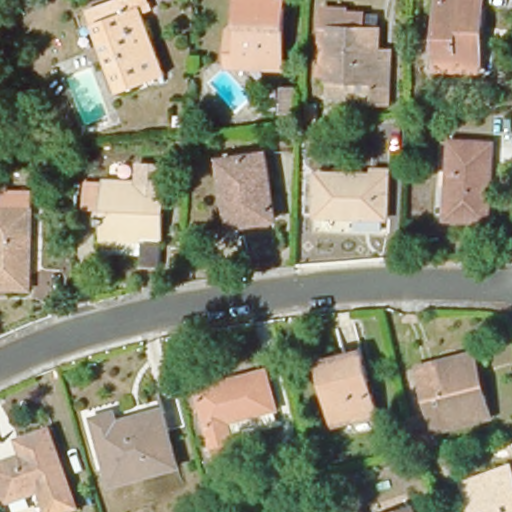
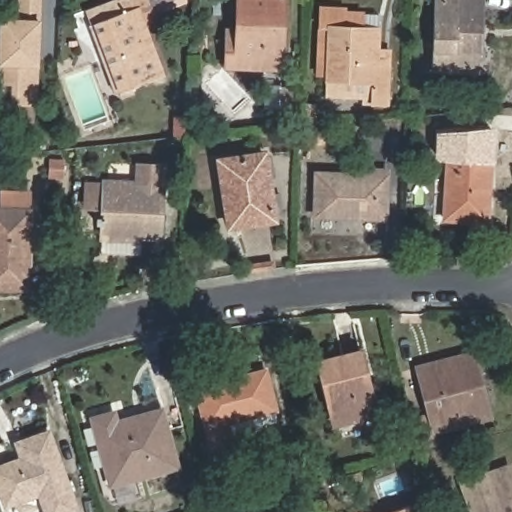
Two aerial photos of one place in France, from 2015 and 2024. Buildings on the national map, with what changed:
new [(18,0),(42,0),(38,106),(0,106),(0,32),(0,17),(17,19),(18,0)]
unchanged [(143,0),(143,2),(134,5),(161,75),(115,92),(88,22),(120,10),(116,0),(143,0)]
unchanged [(285,0),(283,74),(227,72),(228,36),(237,36),(239,0),(285,0)]
unchanged [(435,66),(437,0),(483,0),(482,24),(475,24),(474,67),(435,66)]
unchanged [(317,3),(340,4),(340,7),(358,9),(358,24),(374,25),(374,46),(385,46),(383,98),(369,98),(369,81),(315,80),(317,3)]
unchanged [(280,91),(295,92),(294,120),(279,119),(280,91)]
unchanged [(449,140),(492,143),(488,223),(445,220),(449,140)]
unchanged [(223,160),(265,154),(275,220),(233,226),(223,160)]
unchanged [(103,241),(95,241),(97,181),(131,182),(132,161),(158,161),(158,182),(155,264),(136,265),(137,253),(103,252),(103,241)]
unchanged [(373,174),(373,170),(387,170),(387,219),(315,217),(316,172),(373,174)]
unchanged [(77,240),(80,181),(97,181),(95,241),(77,240)]
unchanged [(35,293),(0,293),(0,214),(8,215),(8,197),(36,197),(35,293)]
unchanged [(323,382),(318,361),(360,350),(378,417),(341,427),(334,428),(323,382)]
unchanged [(429,418),(424,399),(444,395),(436,367),(473,357),(491,422),(436,437),(440,449),(417,453),(410,423),(429,418)]
unchanged [(276,412),(225,425),(232,449),(213,453),(197,388),(265,371),(276,412)]
unchanged [(178,467),(111,485),(93,417),(115,412),(117,422),(162,410),(178,467)]
unchanged [(49,432),(77,510),(72,512),(46,512),(39,493),(6,506),(0,488),(0,466),(22,458),(18,442),(49,432)]
unchanged [(462,482),(509,466),(512,473),(512,512),(473,512),(462,482)]
unchanged [(367,507),(369,512),(356,512),(367,507)]
unchanged [(407,507),(409,512),(393,512),(407,507)]

